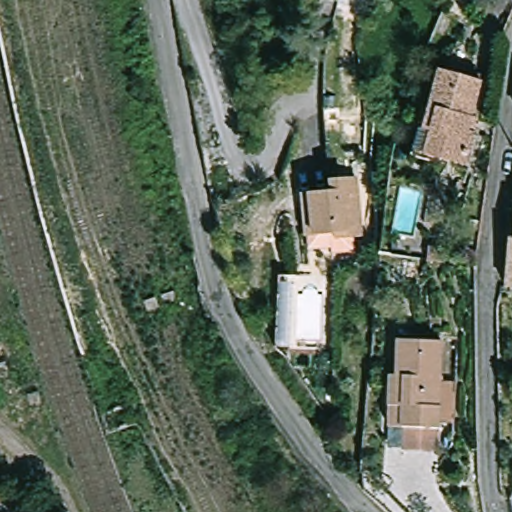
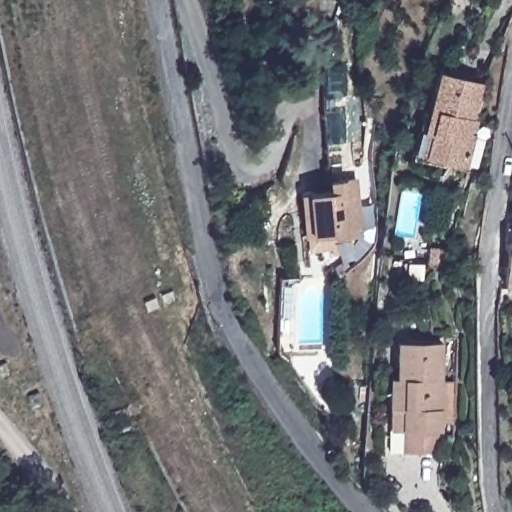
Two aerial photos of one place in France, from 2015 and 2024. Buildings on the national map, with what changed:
unchanged [(432,160),(419,158),(427,109),(433,110),(440,71),(480,77),(475,114),(480,115),(477,130),(472,161),(472,167),(432,160)]
unchanged [(362,236),(335,238),(335,232),(307,235),(302,195),(331,192),(330,182),(355,179),(362,236)]
unchanged [(509,282),(508,244),(508,230),(512,230),(512,291),(509,291),(509,282)]
unchanged [(398,447),(399,427),(387,426),(389,406),(390,390),(390,376),(397,376),(399,339),(442,342),(440,382),(454,382),(450,423),(437,422),(437,430),(435,450),(398,447)]

